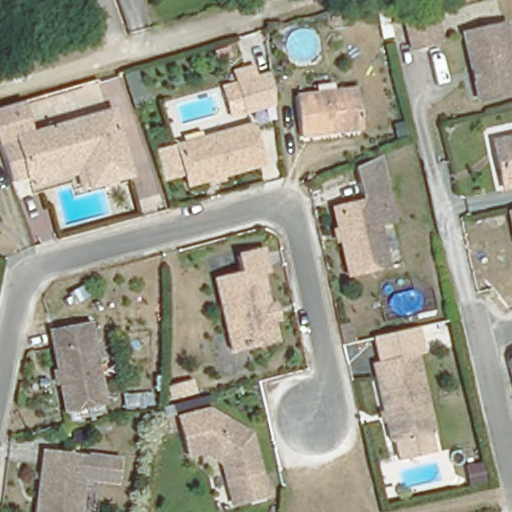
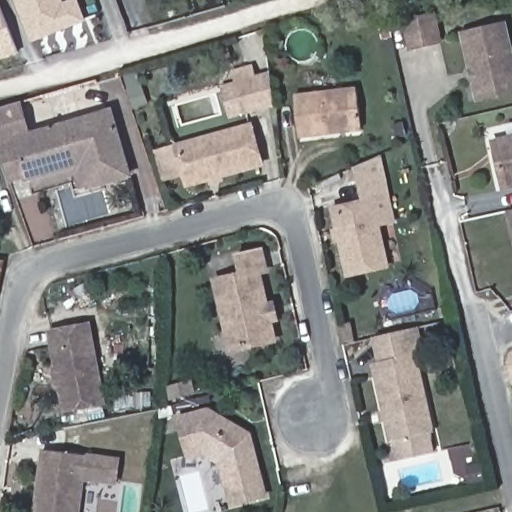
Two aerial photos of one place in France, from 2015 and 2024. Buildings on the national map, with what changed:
new [(63,2),(70,0),(77,0),(85,21),(29,41),(14,0),(62,0),(63,2)]
new [(0,59),(0,8),(17,54),(0,59)]
unchanged [(432,10),(439,39),(409,46),(403,17),(432,10)]
unchanged [(504,25),(512,55),(512,93),(481,101),(463,36),(504,25)]
unchanged [(230,79),(263,70),(266,100),(238,108),(230,79)]
unchanged [(352,90),(357,131),(295,138),(291,98),(352,90)]
unchanged [(42,142),(6,152),(2,142),(0,143),(0,111),(30,102),(42,142)]
unchanged [(42,142),(118,121),(135,184),(92,196),(87,177),(40,190),(36,177),(17,183),(11,167),(6,152),(42,142)]
unchanged [(186,176),(178,148),(253,127),(263,165),(198,183),(189,186),(186,176)]
unchanged [(503,181),(496,138),(512,136),(512,180),(503,181)]
unchanged [(380,158),(387,194),(370,197),(372,202),(352,206),(345,174),(380,158)]
unchanged [(378,226),(387,268),(349,277),(336,219),(334,210),(343,208),(352,206),(372,202),(370,197),(387,194),(388,198),(399,195),(404,219),(393,221),(394,223),(378,226)]
unchanged [(512,207),(512,223),(508,207),(512,207)]
unchanged [(231,346),(217,286),(242,281),(238,262),(263,257),(267,276),(260,278),(268,313),(274,311),(277,323),(271,325),(276,346),(245,353),(233,356),(231,346)]
unchanged [(105,403),(67,410),(52,333),(90,325),(105,403)]
unchanged [(419,328),(425,354),(416,355),(415,351),(377,359),(372,338),(419,328)]
unchanged [(508,349),(512,349),(512,388),(510,388),(503,363),(508,349)]
unchanged [(395,461),(391,439),(373,360),(377,359),(415,351),(416,355),(433,429),(430,430),(434,453),(395,461)]
unchanged [(194,380),(197,392),(173,398),(170,386),(194,380)]
unchanged [(203,453),(189,457),(180,420),(209,412),(250,436),(252,444),(260,473),(266,497),(233,506),(222,464),(203,453)]
unchanged [(115,460),(112,484),(79,480),(75,512),(31,512),(39,450),(82,456),(115,460)]
unchanged [(485,463),(489,481),(474,484),(470,466),(485,463)]

